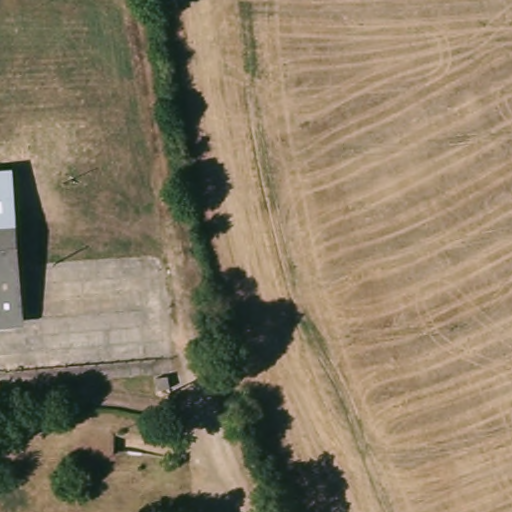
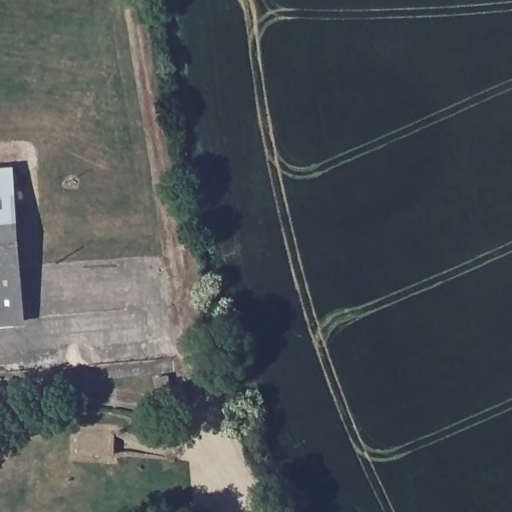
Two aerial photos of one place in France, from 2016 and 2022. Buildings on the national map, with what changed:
unchanged [(16,169),(26,320),(0,322),(0,170),(16,169)]

